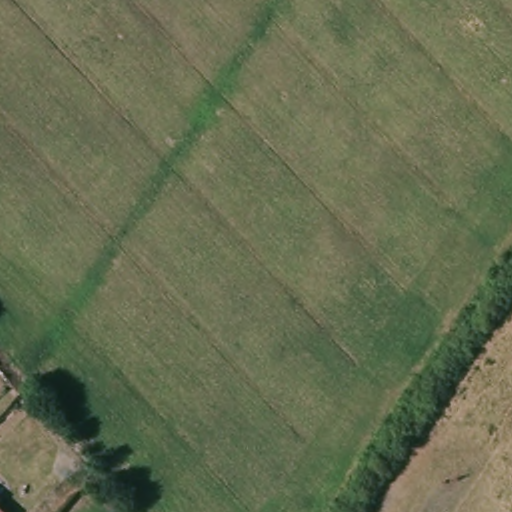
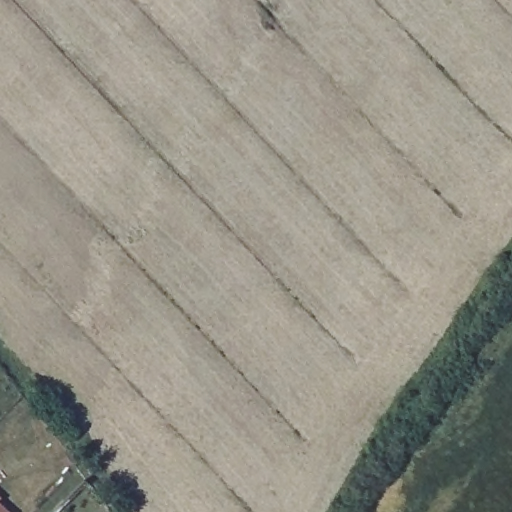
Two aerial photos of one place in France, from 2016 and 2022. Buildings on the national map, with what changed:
unchanged [(4,512),(0,512),(0,504),(6,510),(4,512)]

